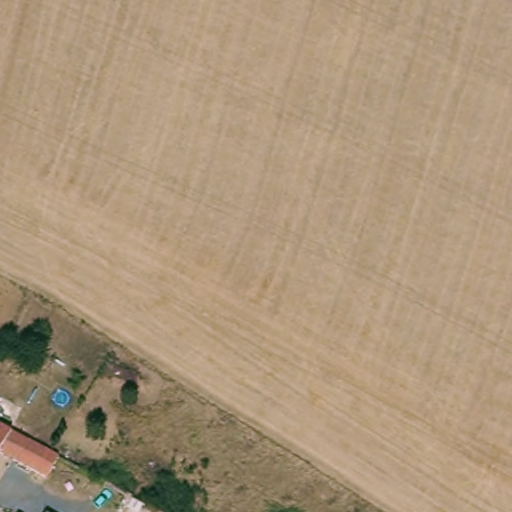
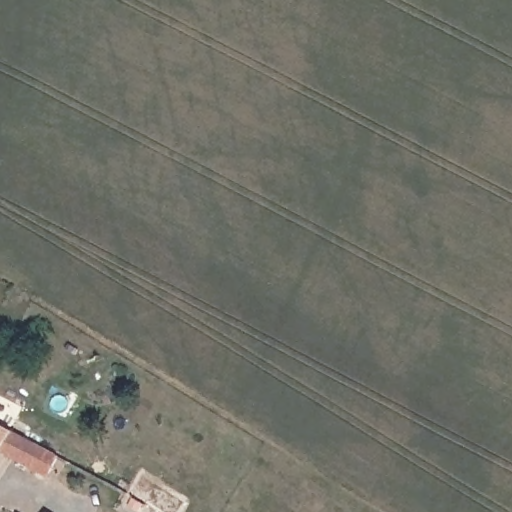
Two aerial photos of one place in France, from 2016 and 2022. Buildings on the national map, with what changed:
unchanged [(54,456),(45,476),(0,452),(0,426),(54,456)]
unchanged [(21,502),(40,511),(45,510),(49,512),(15,512),(21,502)]

